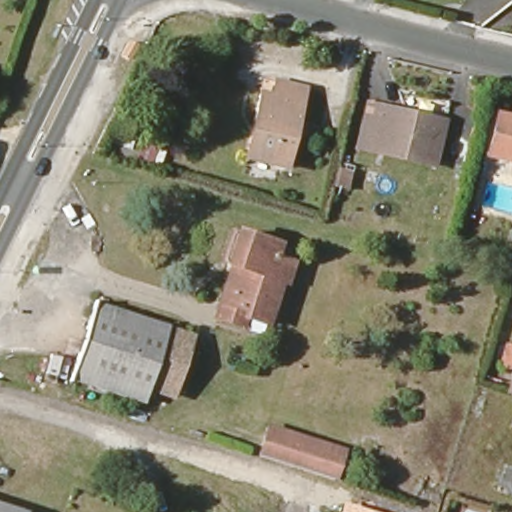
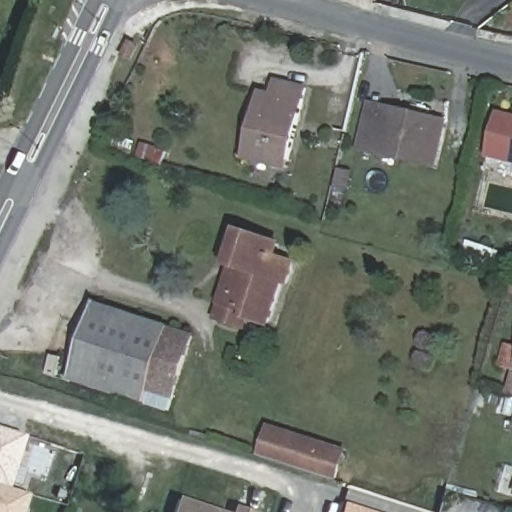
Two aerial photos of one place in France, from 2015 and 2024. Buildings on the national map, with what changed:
unchanged [(255,123),(261,98),(272,100),(276,86),(306,93),(287,173),(253,166),(245,164),(255,123)]
unchanged [(435,167),(371,151),(357,148),(368,103),(395,110),(446,122),(435,167)]
unchanged [(498,114),(512,117),(512,162),(488,156),(498,114)]
unchanged [(132,150),(120,147),(123,139),(134,142),(132,150)]
unchanged [(162,159),(139,153),(142,144),(164,151),(162,159)]
unchanged [(344,183),(338,181),(341,170),(347,171),(344,183)]
unchanged [(236,260),(232,259),(243,226),(246,227),(285,239),(281,252),(299,258),(293,279),(288,278),(274,320),(252,313),(249,322),(220,313),(225,297),(234,268),(236,260)]
unchanged [(493,263),(464,254),(468,242),(497,251),(493,263)]
unchanged [(178,398),(153,390),(149,403),(75,379),(101,304),(198,335),(178,398)]
unchanged [(512,351),(512,373),(506,371),(512,351)]
unchanged [(334,480),(260,457),(270,426),(345,450),(334,480)]
new [(28,495),(24,512),(0,512),(0,429),(25,436),(9,490),(28,495)]
new [(227,512),(175,512),(180,496),(227,512)]
unchanged [(379,512),(342,512),(345,501),(379,512)]
demolished [(22,512),(0,512),(0,505),(22,512)]
new [(258,512),(234,512),(235,505),(258,512)]

